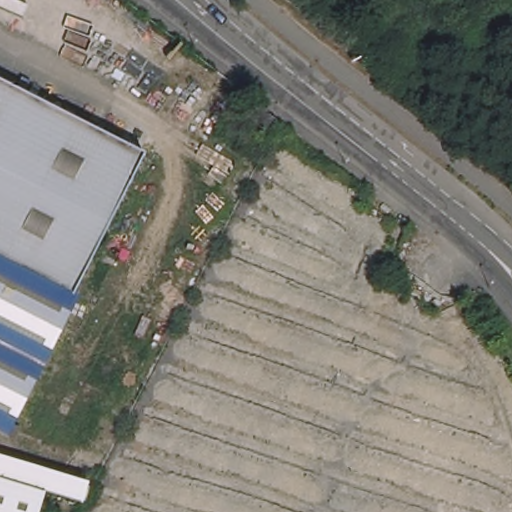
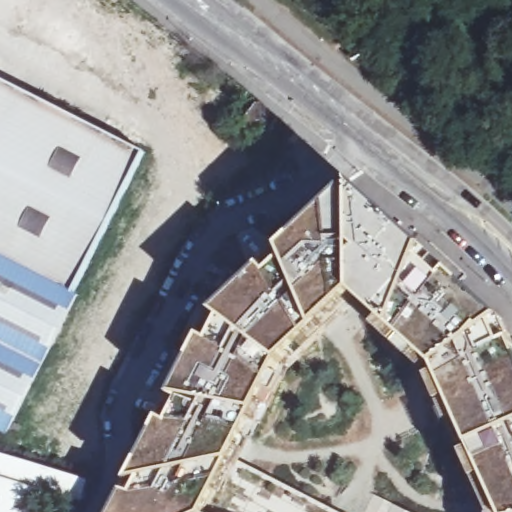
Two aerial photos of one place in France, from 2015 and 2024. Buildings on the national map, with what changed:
unchanged [(147,153),(87,272),(0,228),(0,78),(147,153)]
unchanged [(257,102),(278,118),(264,139),(242,122),(257,102)]
new [(355,186),(502,320),(512,341),(512,512),(502,512),(434,364),(352,292),(279,361),(203,512),(113,512),(210,320),(355,186)]
unchanged [(74,295),(0,258),(0,228),(87,272),(74,295)]
unchanged [(74,295),(79,298),(15,423),(22,427),(15,439),(0,431),(0,258),(74,295)]
unchanged [(84,480),(78,501),(43,490),(0,476),(0,453),(84,480)]
unchanged [(37,512),(0,512),(0,476),(43,490),(37,512)]

